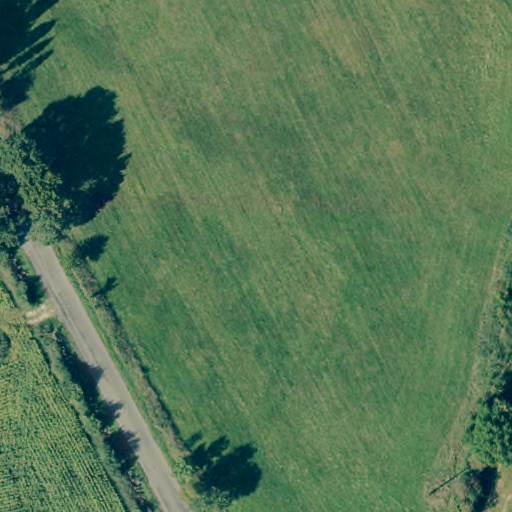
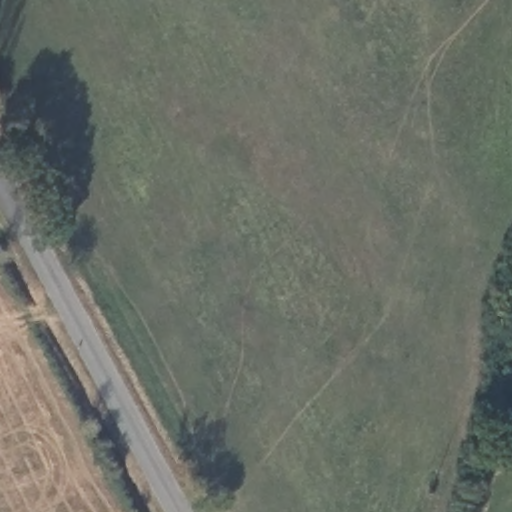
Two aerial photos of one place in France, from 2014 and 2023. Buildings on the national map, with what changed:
[]

